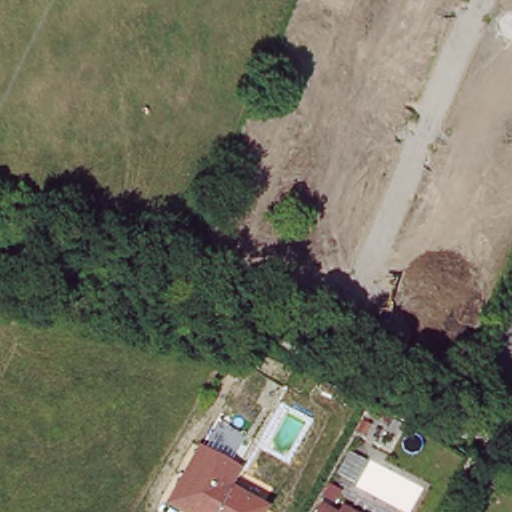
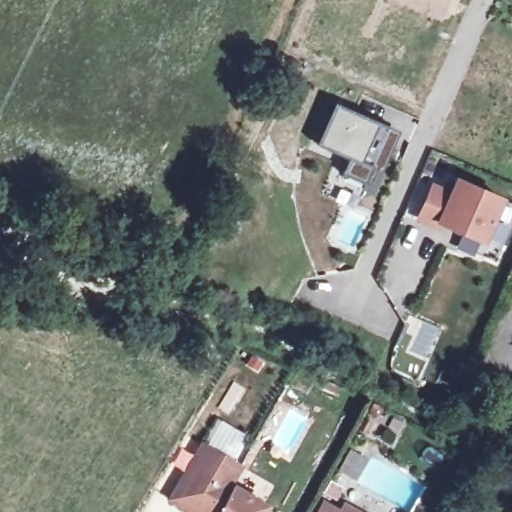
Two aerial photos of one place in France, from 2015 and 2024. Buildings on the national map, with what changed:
new [(385,169),(375,193),(365,189),(367,184),(345,175),(352,159),(319,145),(337,103),(380,121),(380,124),(398,131),(401,133),(385,169)]
new [(435,186),(454,194),(460,180),(504,199),(485,241),(442,222),(441,227),(422,218),(435,186)]
new [(423,324),(416,339),(407,335),(413,320),(423,324)]
unchanged [(338,388),(336,394),(325,389),(327,383),(338,388)]
unchanged [(167,504),(200,444),(242,467),(232,486),(267,505),(263,512),(182,512),(167,504)]
unchanged [(316,501),(345,512),(312,512),(316,501)]

